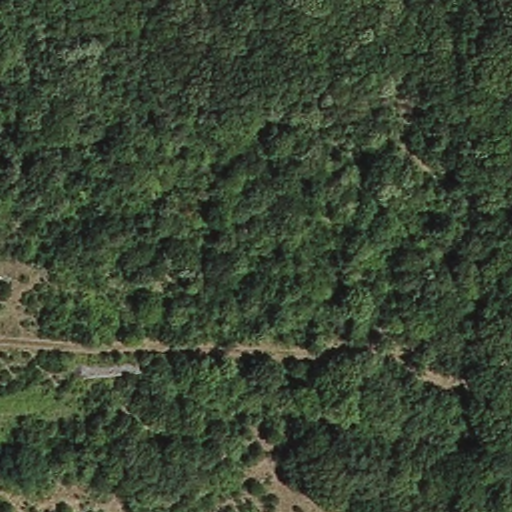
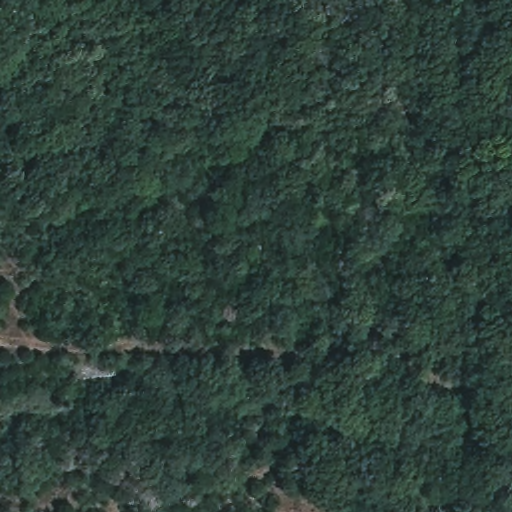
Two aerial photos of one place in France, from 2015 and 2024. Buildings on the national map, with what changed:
unchanged [(0,127),(0,109),(18,114),(14,131),(0,127)]

